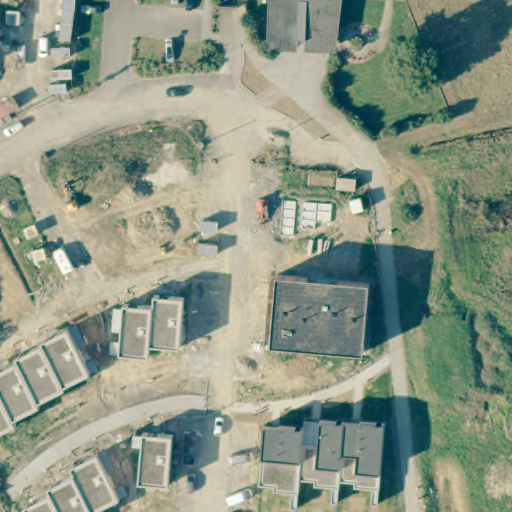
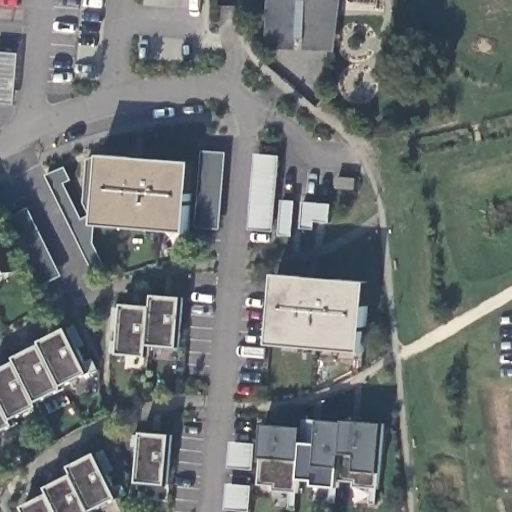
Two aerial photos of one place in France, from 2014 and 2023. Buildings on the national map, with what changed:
unchanged [(339,48),(304,49),(306,36),(295,35),(295,46),(264,46),(265,0),(341,0),(339,48)]
new [(15,105),(0,104),(0,52),(19,54),(15,105)]
new [(228,154),(221,229),(198,227),(204,151),(228,154)]
new [(282,156),(275,231),(250,229),(257,154),(282,156)]
new [(66,167),(73,180),(66,183),(83,219),(91,215),(86,200),(89,160),(102,155),(196,162),(189,232),(97,226),(96,243),(105,263),(93,269),(47,176),(66,167)]
new [(30,209),(64,277),(42,286),(8,219),(30,209)]
new [(0,280),(0,250),(12,274),(0,280)]
unchanged [(276,275),(369,285),(363,354),(271,345),(276,275)]
unchanged [(123,305),(153,307),(155,296),(183,298),(179,348),(148,345),(147,359),(121,357),(123,305)]
unchanged [(16,361),(42,347),(40,344),(68,331),(90,373),(63,386),(64,389),(39,400),(41,406),(13,420),(15,425),(0,434),(0,372),(16,364),(16,361)]
unchanged [(262,458),(265,427),(304,431),(303,446),(320,447),(323,420),(383,426),(379,475),(377,490),(358,489),(358,482),(340,481),(338,486),(315,485),(316,480),(299,479),(298,492),(275,491),(276,485),(260,484),(262,458)]
unchanged [(139,481),(145,433),(172,435),(168,484),(139,481)]
unchanged [(51,496),(48,490),(75,475),(71,469),(97,456),(119,498),(92,512),(25,512),(24,510),(51,496)]

